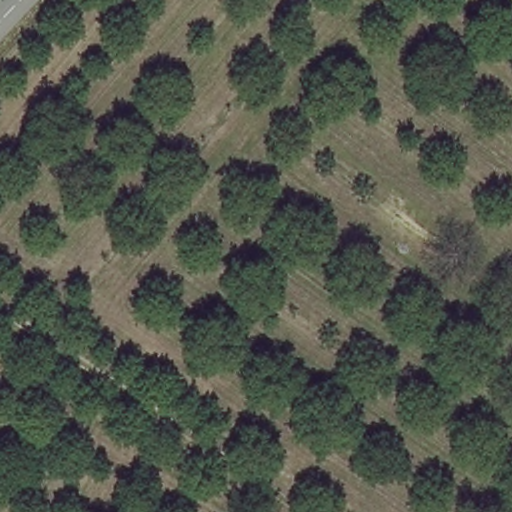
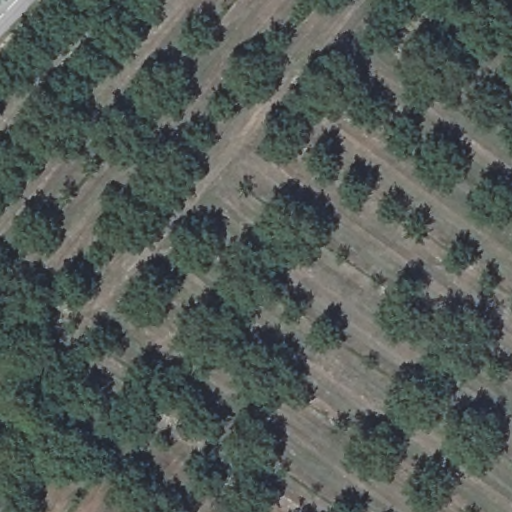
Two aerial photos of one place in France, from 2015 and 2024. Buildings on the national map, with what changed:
[]

